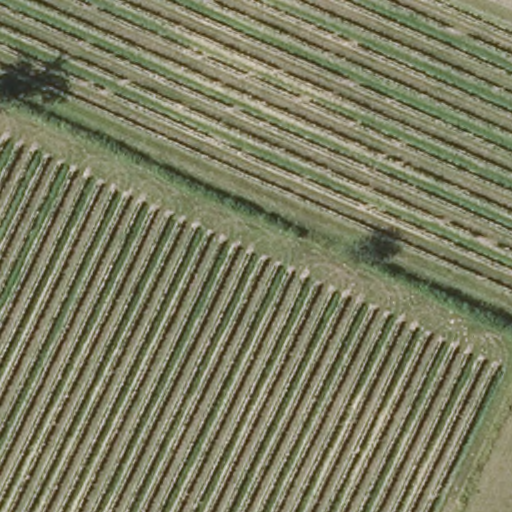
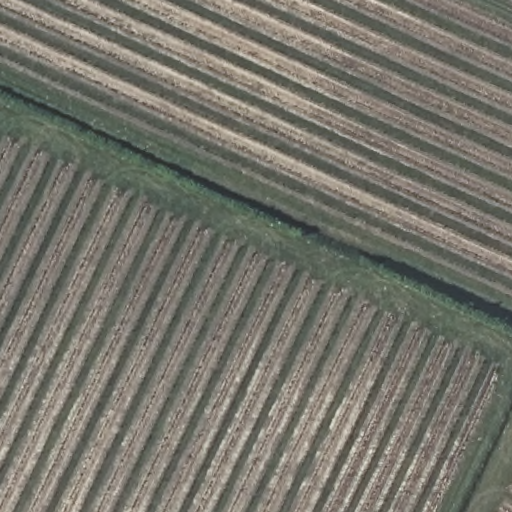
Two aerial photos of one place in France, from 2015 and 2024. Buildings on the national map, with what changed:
[]

